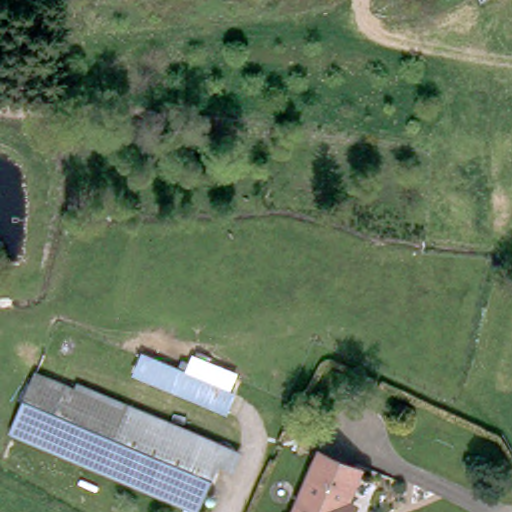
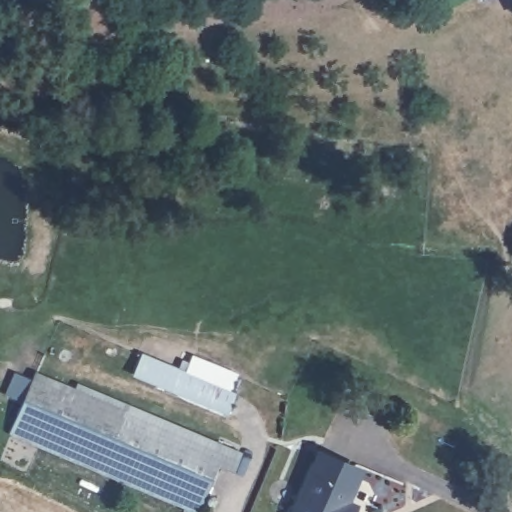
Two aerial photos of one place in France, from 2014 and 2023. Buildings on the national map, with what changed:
unchanged [(185,367),(192,353),(237,370),(232,389),(237,392),(230,415),(133,376),(142,350),(185,367)]
unchanged [(118,400),(135,407),(245,452),(237,469),(222,463),(201,511),(17,433),(41,374),(83,392),(86,385),(112,396),(108,402),(116,405),(118,400)]
unchanged [(358,512),(300,512),(325,454),(365,471),(352,503),(360,507),(358,512)]

